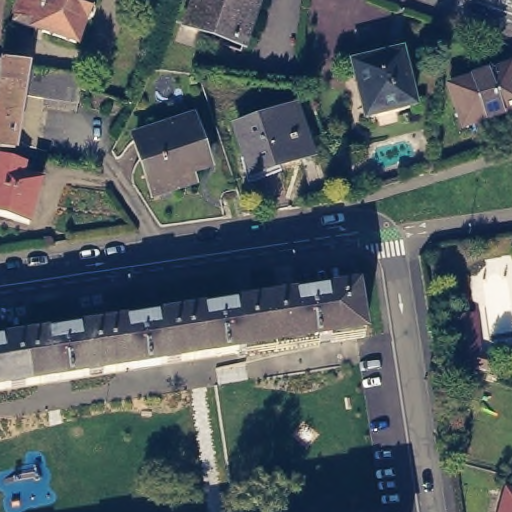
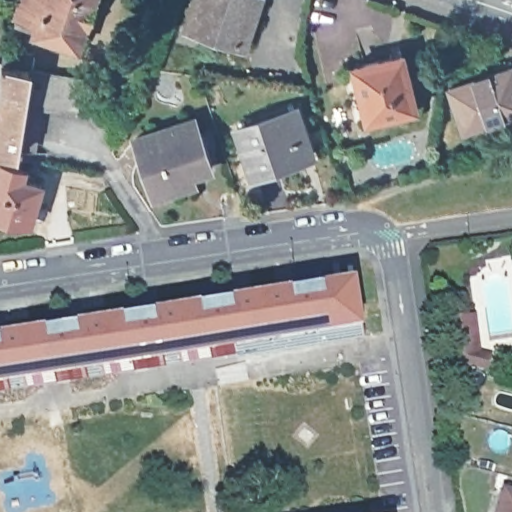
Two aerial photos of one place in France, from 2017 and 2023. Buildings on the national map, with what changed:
unchanged [(96,8),(94,12),(91,15),(88,17),(83,17),(75,40),(35,26),(34,24),(14,18),(20,0),(95,0),(96,4),(96,8)]
unchanged [(181,21),(189,0),(253,0),(239,40),(181,21)]
unchanged [(0,69),(1,64),(4,48),(32,53),(31,69),(83,76),(80,89),(78,108),(24,99),(15,156),(0,154),(0,69)]
unchanged [(402,55),(414,108),(368,119),(356,64),(402,55)]
unchanged [(449,88),(512,66),(512,112),(464,129),(449,88)]
unchanged [(291,104),(306,150),(248,170),(233,124),(291,104)]
unchanged [(193,109),(209,157),(190,164),(194,174),(155,187),(135,128),(193,109)]
unchanged [(338,154),(365,147),(369,163),(343,169),(338,154)]
unchanged [(30,225),(0,216),(0,162),(0,160),(31,170),(28,179),(41,184),(30,225)]
unchanged [(359,292),(365,336),(0,391),(0,346),(359,292)]
unchanged [(480,351),(496,357),(491,372),(454,362),(446,318),(475,314),(480,351)]
unchanged [(512,491),(512,512),(496,512),(503,488),(512,491)]

